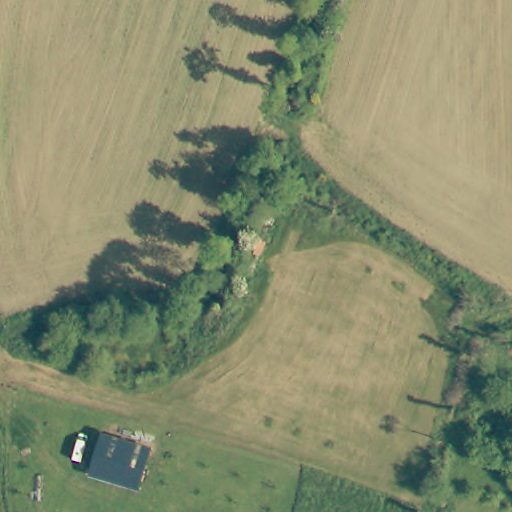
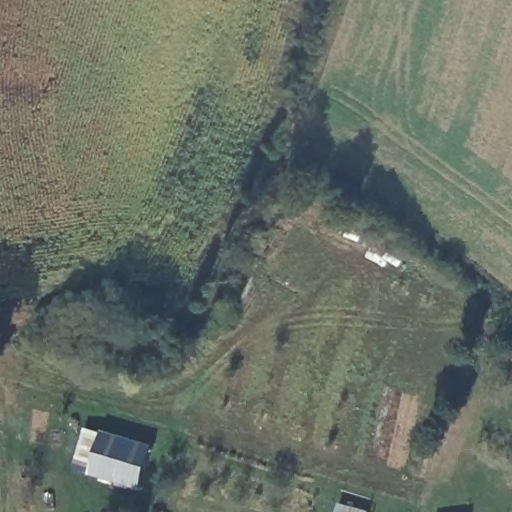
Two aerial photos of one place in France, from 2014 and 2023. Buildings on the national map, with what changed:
new [(89,474),(101,430),(120,436),(120,437),(151,447),(139,489),(89,474)]

